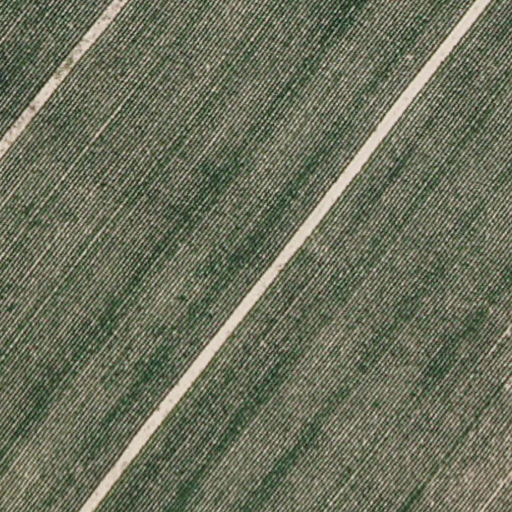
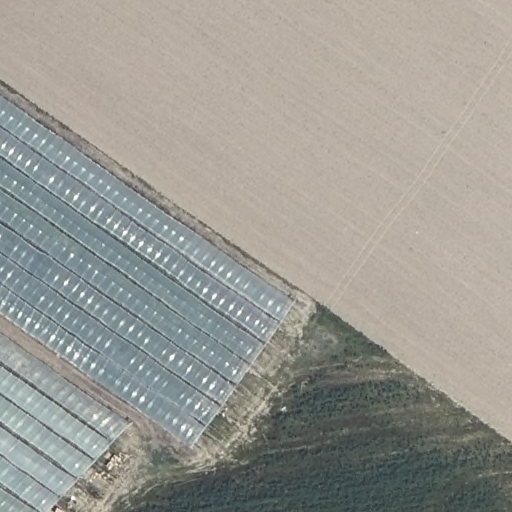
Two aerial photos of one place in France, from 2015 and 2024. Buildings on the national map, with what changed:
new [(0,314),(0,95),(293,302),(189,449),(0,314)]
new [(0,512),(0,333),(129,426),(47,512),(0,512)]

